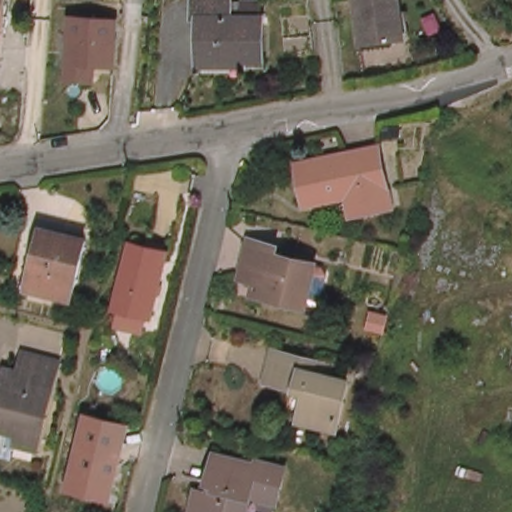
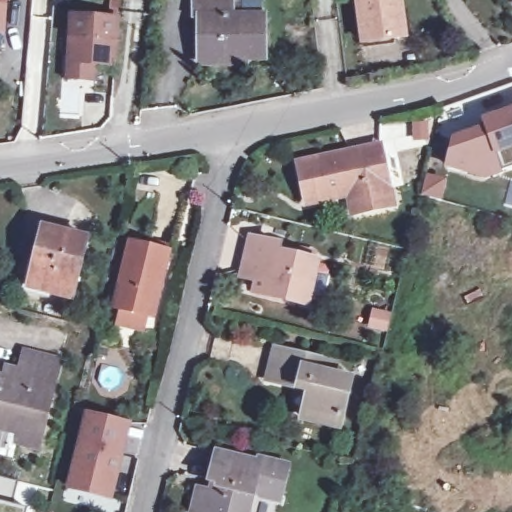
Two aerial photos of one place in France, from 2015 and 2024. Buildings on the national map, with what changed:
unchanged [(4,0),(1,29),(0,29),(0,0),(4,0)]
unchanged [(204,59),(206,18),(197,17),(197,0),(238,0),(238,21),(246,21),(246,0),(263,0),(263,21),(268,22),(266,62),(204,59)]
unchanged [(358,0),(398,0),(402,36),(362,39),(358,0)]
unchanged [(69,84),(70,68),(74,22),(119,25),(118,37),(116,63),(115,72),(90,70),(89,86),(69,84)]
new [(481,117),(512,106),(512,169),(503,172),(487,178),(445,166),(454,135),(484,125),(481,117)]
unchanged [(378,143),(391,201),(354,209),(350,190),(308,198),(299,159),(378,143)]
unchanged [(75,294),(31,283),(45,224),(90,235),(75,294)]
unchanged [(260,285),(242,281),(253,242),(280,249),(278,257),(317,267),(306,309),(266,299),(258,297),(260,285)]
unchanged [(172,254),(156,321),(118,312),(134,245),(172,254)]
unchanged [(19,442),(21,433),(0,428),(0,376),(5,377),(7,367),(22,371),(26,350),(62,359),(46,427),(41,447),(19,442)]
unchanged [(316,362),(314,371),(350,381),(338,427),(302,418),(308,394),(267,383),(275,351),(316,362)]
unchanged [(64,491),(83,414),(130,424),(111,502),(64,491)]
unchanged [(259,464),(260,461),(291,469),(283,503),(256,496),(252,512),(195,512),(201,491),(205,477),(212,479),(218,454),(259,464)]

